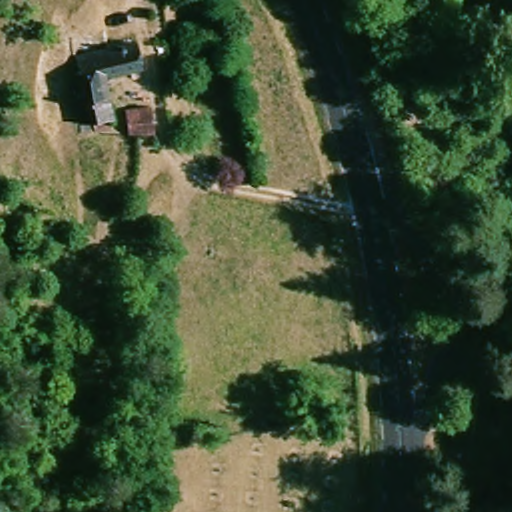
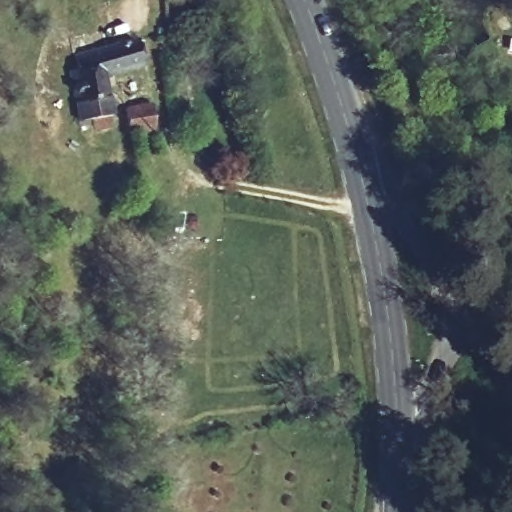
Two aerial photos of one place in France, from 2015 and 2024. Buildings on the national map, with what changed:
unchanged [(78,121),(65,43),(89,38),(92,51),(143,43),(144,74),(108,77),(113,116),(109,116),(110,132),(99,134),(98,120),(78,121)]
unchanged [(132,143),(128,130),(125,115),(153,111),(161,140),(149,141),(132,143)]

